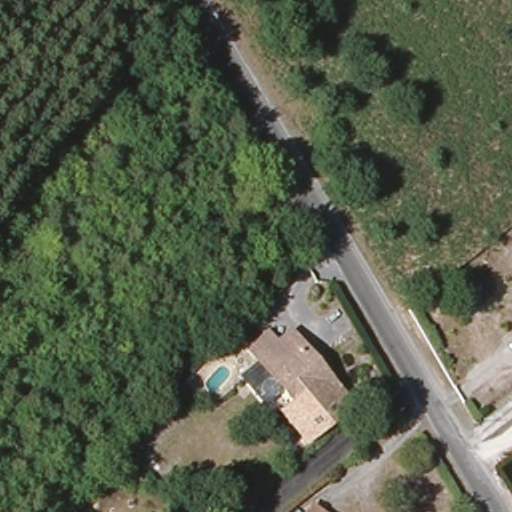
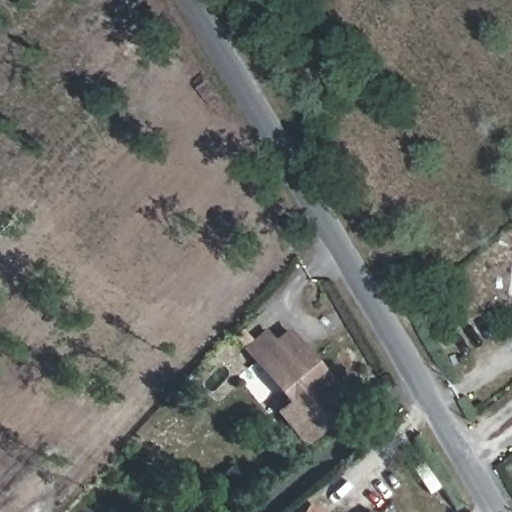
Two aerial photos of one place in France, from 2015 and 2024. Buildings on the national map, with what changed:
unchanged [(246,348),(260,336),(270,347),(284,335),(288,332),(312,360),(321,371),(290,401),(255,359),(246,348)]
unchanged [(321,371),(337,391),(304,418),(290,401),(321,371)]
unchanged [(227,492),(215,477),(233,463),(245,476),(227,492)]
unchanged [(308,512),(301,512),(304,508),(308,512)]

